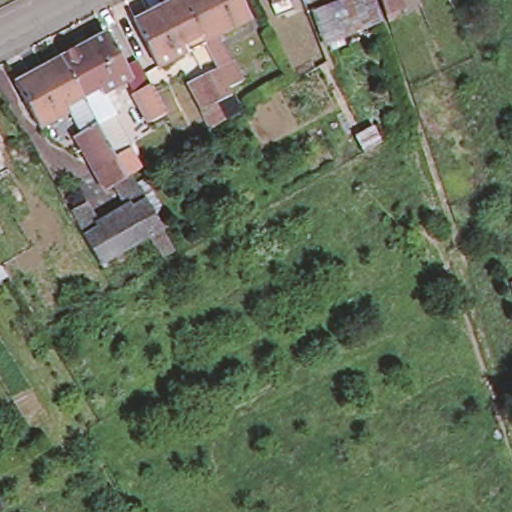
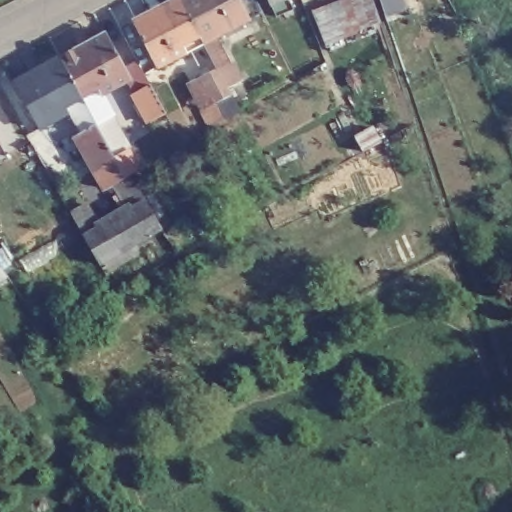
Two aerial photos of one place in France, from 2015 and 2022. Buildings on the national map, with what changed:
unchanged [(183,47),(186,53),(158,68),(133,22),(175,0),(179,0),(199,38),(183,47)]
unchanged [(216,71),(203,45),(199,38),(179,0),(237,0),(248,21),(216,38),(228,65),(231,64),(242,84),(228,92),(231,99),(217,106),(202,114),(189,87),(204,79),(217,73),(216,71)]
unchanged [(271,13),(266,2),(264,0),(286,0),(289,7),(271,13)]
unchanged [(314,0),(368,0),(373,13),(319,33),(308,2),(314,0)]
unchanged [(402,8),(382,14),(377,0),(399,0),(402,8)]
unchanged [(103,96),(97,90),(81,99),(59,59),(104,34),(131,80),(103,96)]
unchanged [(59,59),(81,99),(65,109),(68,114),(40,130),(15,84),(59,59)]
unchanged [(166,115),(151,125),(134,96),(151,87),(166,115)]
unchanged [(79,138),(85,135),(74,116),(86,108),(98,129),(127,180),(109,193),(79,138)]
unchanged [(161,230),(98,267),(84,240),(147,205),(161,230)]

